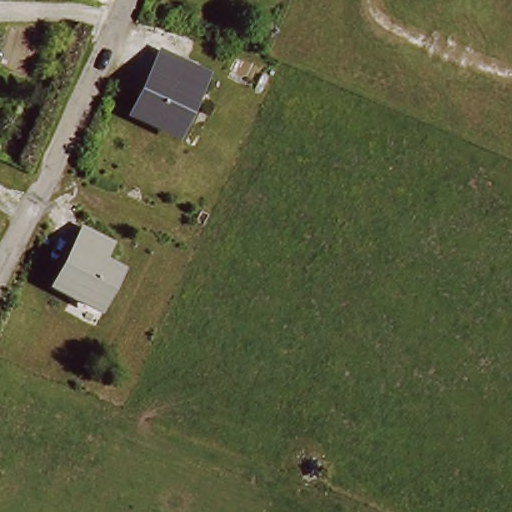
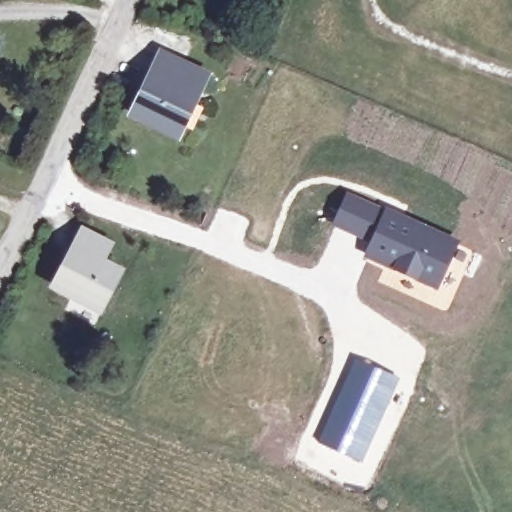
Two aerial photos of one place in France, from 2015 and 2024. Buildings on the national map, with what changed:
unchanged [(196,71),(188,88),(197,92),(176,135),(131,115),(159,54),(196,71)]
new [(346,190),(398,211),(460,240),(437,290),(362,256),(367,242),(330,225),(346,190)]
unchanged [(104,240),(95,257),(114,267),(94,305),(49,281),(78,226),(104,240)]
new [(355,356),(398,377),(360,461),(317,440),(355,356)]

